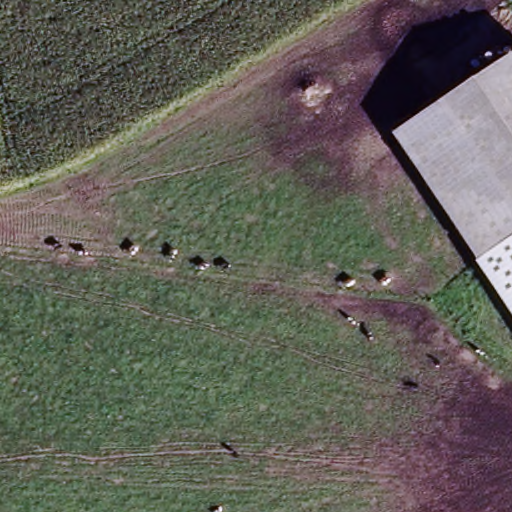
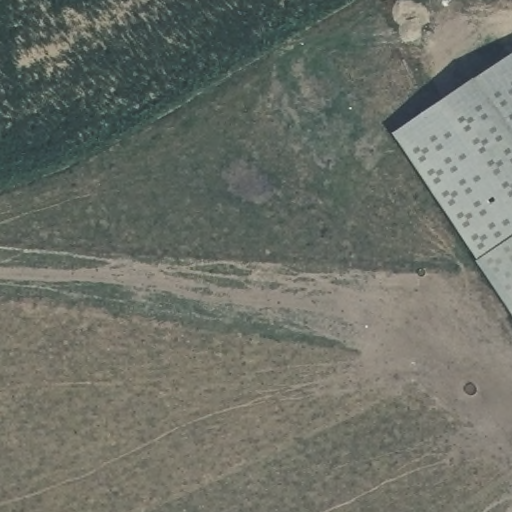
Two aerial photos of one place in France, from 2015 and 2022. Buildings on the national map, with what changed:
unchanged [(476,261),(391,136),(512,54),(512,237),(476,261)]
unchanged [(476,261),(512,237),(512,314),(476,261)]

